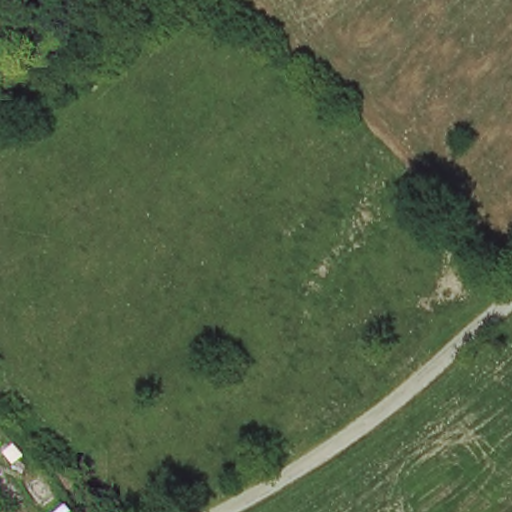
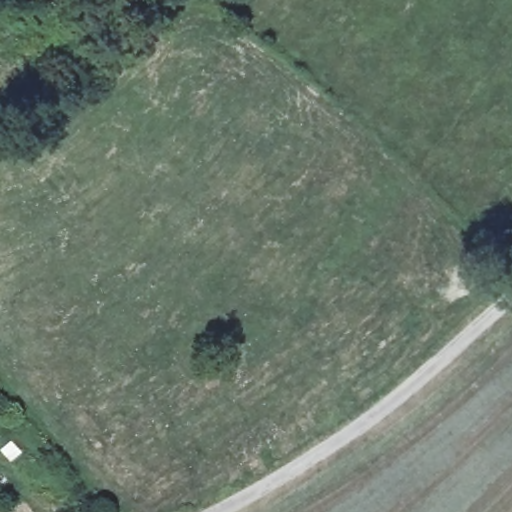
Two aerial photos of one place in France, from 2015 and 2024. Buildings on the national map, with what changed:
[]

